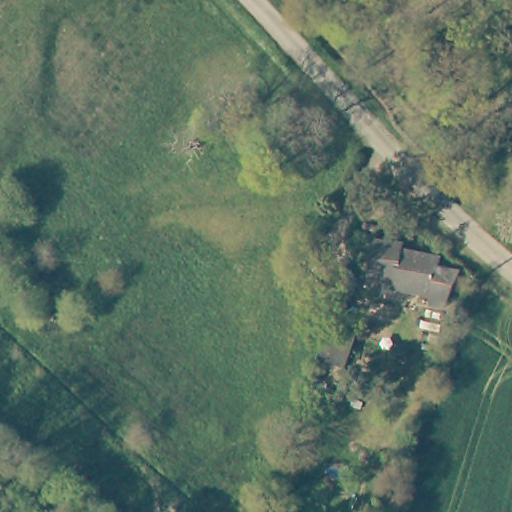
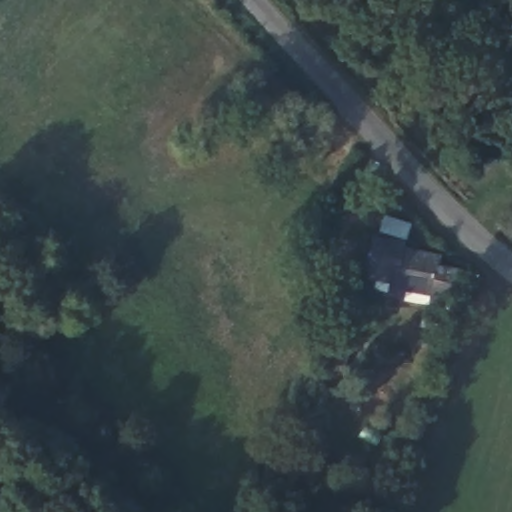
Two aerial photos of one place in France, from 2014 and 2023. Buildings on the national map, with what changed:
unchanged [(401,244),(400,253),(438,258),(436,268),(460,272),(445,307),(430,305),(431,295),(393,290),(395,282),(368,277),(373,241),(401,244)]
unchanged [(356,337),(342,367),(320,358),(333,327),(356,337)]

